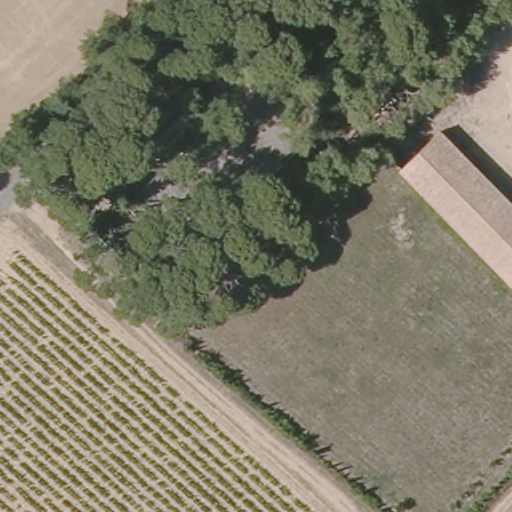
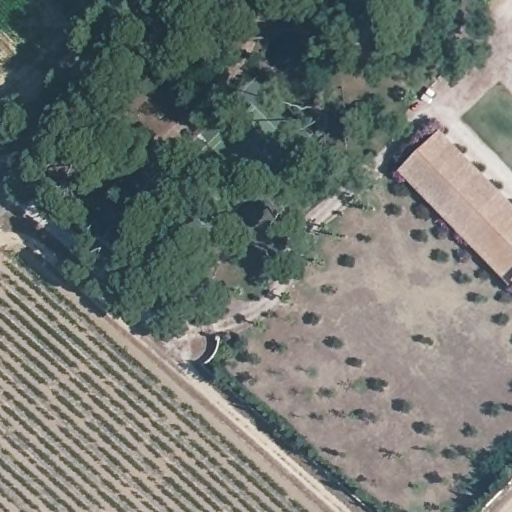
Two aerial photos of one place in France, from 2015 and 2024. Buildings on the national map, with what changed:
unchanged [(512,200),(512,279),(408,171),(447,132),(512,200)]

